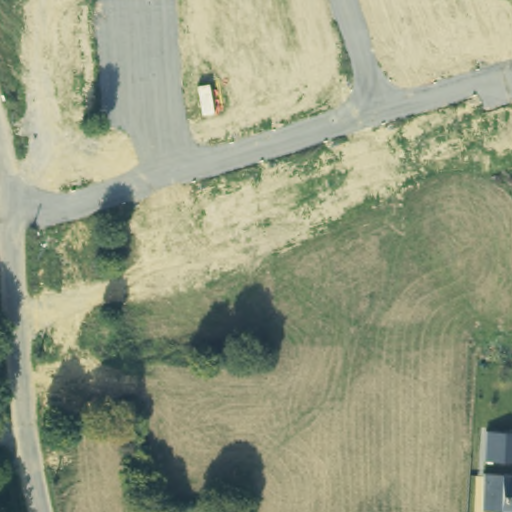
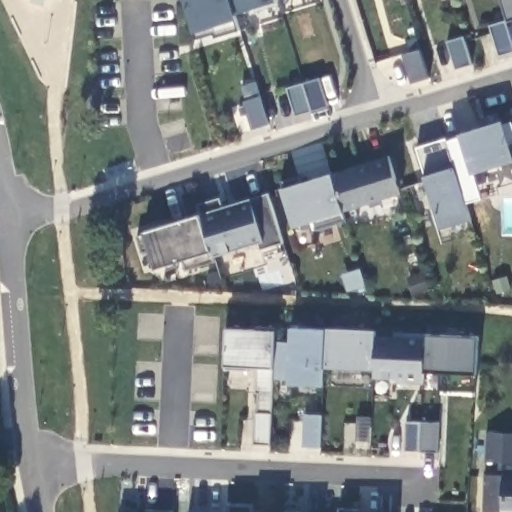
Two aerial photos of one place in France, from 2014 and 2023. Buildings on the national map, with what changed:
new [(184,0),(278,0),(278,2),(235,16),(237,19),(240,29),(215,37),(214,34),(196,39),(194,32),(184,0)]
unchanged [(507,20),(501,0),(512,0),(512,21),(507,22),(512,38),(512,51),(500,55),(490,26),(507,20)]
new [(408,54),(404,42),(417,37),(429,79),(413,84),(404,55),(408,54)]
new [(464,38),(473,67),(456,72),(448,43),(464,38)]
new [(320,79),(329,107),(312,112),(295,117),(287,89),(303,84),(320,79)]
new [(256,80),(269,123),(253,128),(244,100),(246,99),(242,85),(256,80)]
new [(512,163),(471,175),(459,179),(471,219),(441,229),(425,176),(416,147),(446,137),(447,141),(460,137),(459,134),(503,121),(512,150),(512,163)]
unchanged [(401,194),(343,212),(346,221),(317,230),(315,221),(293,227),(281,189),(281,181),(301,174),(302,182),(332,172),(332,175),(389,156),(401,194)]
new [(261,249),(259,243),(215,256),(215,261),(185,270),(183,261),(155,269),(150,252),(141,252),(137,237),(145,235),(143,232),(200,214),(197,205),(220,197),(223,207),(268,193),(283,242),(261,249)]
new [(324,362),(322,388),(289,386),(288,380),(274,379),(272,445),(253,443),(257,368),(223,366),(224,327),(276,331),(275,342),(290,342),(292,327),(326,328),(324,362)]
new [(376,331),(374,365),(324,362),(326,328),(376,331)]
new [(394,337),(394,332),(426,333),(424,375),(417,375),(417,378),(396,378),(396,373),(374,372),(376,336),(394,337)]
new [(475,375),(473,392),(438,390),(439,376),(424,375),(424,370),(426,333),(477,337),(475,375)]
new [(304,412),(321,412),(320,445),(303,444),(304,412)]
new [(421,452),(404,451),(405,421),(423,422),(438,422),(436,452),(421,452)]
unchanged [(486,432),(512,432),(512,462),(485,462),(486,432)]
unchanged [(484,473),(512,475),(512,512),(488,512),(482,512),(484,473)]
new [(187,508),(225,510),(226,512),(187,512),(187,508)]
new [(338,509),(367,510),(367,512),(338,512),(338,509)]
new [(147,511),(163,512),(147,512),(147,511)]

